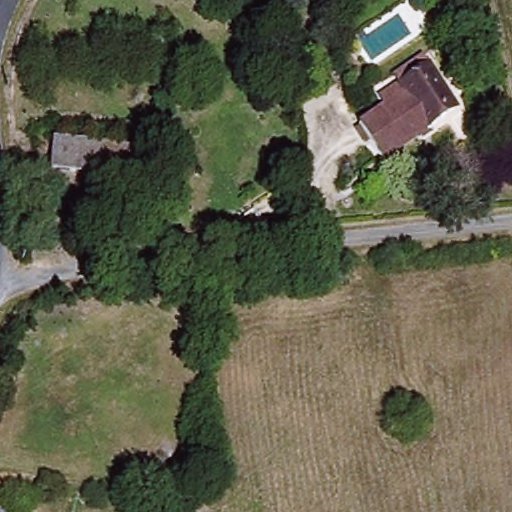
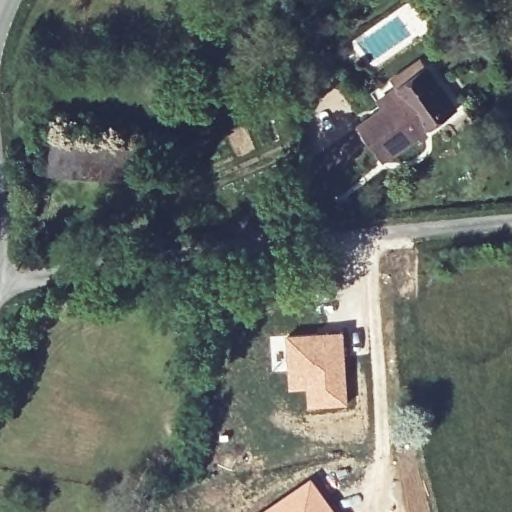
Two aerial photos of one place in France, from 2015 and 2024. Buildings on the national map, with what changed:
unchanged [(445,119),(382,160),(360,125),(385,107),(378,97),(396,86),(391,77),(422,57),(452,103),(456,111),(445,119)]
unchanged [(51,172),(54,144),(150,152),(147,182),(51,172)]
new [(345,330),(348,406),(306,408),(305,389),(286,391),(282,333),(345,330)]
new [(336,512),(258,512),(310,476),(336,512)]

